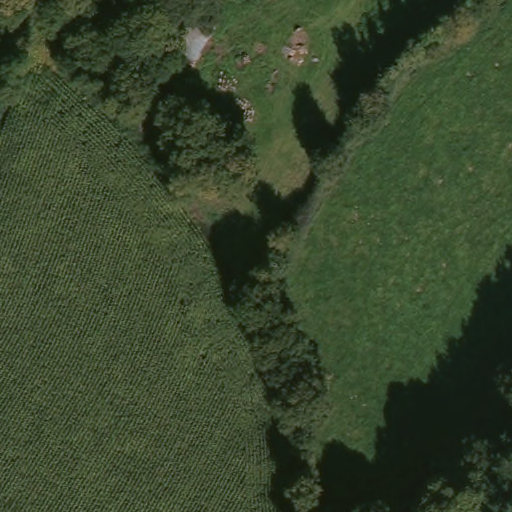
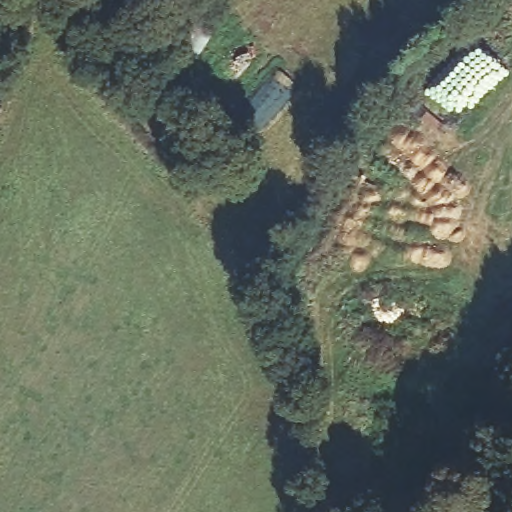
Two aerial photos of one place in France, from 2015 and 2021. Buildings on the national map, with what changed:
unchanged [(184,48),(205,12),(226,23),(204,60),(184,48)]

